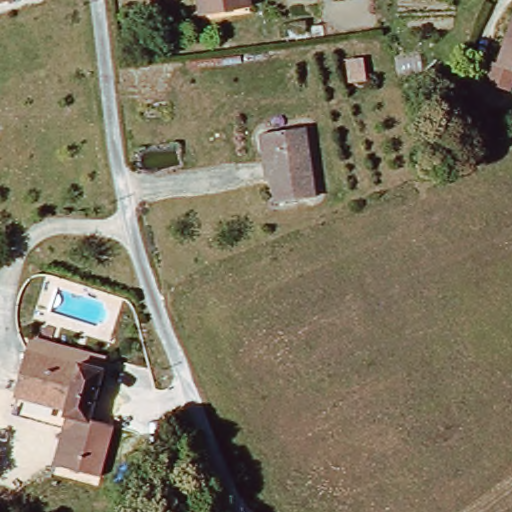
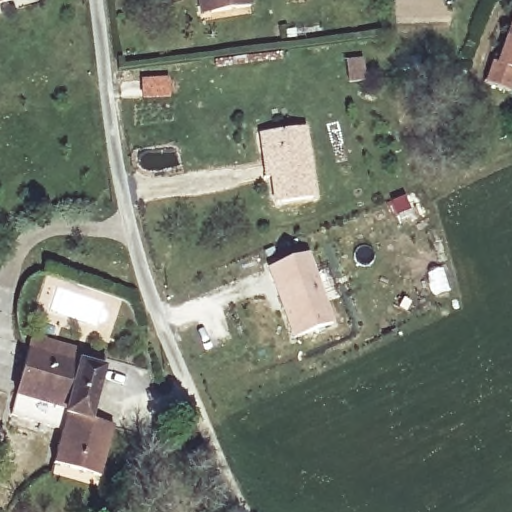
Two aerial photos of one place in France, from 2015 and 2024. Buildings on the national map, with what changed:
unchanged [(0,4),(0,0),(15,0),(0,4)]
unchanged [(251,10),(201,16),(200,0),(249,0),(251,10)]
unchanged [(485,84),(491,67),(503,72),(512,43),(512,86),(510,92),(485,84)]
demolished [(162,73),(166,98),(136,102),(133,76),(162,73)]
unchanged [(308,133),(314,197),(274,200),(270,151),(263,152),(261,137),(308,133)]
new [(307,254),(333,323),(296,337),(269,268),(307,254)]
unchanged [(15,409),(19,393),(28,353),(101,370),(89,421),(114,426),(111,442),(101,477),(54,467),(66,418),(15,409)]

